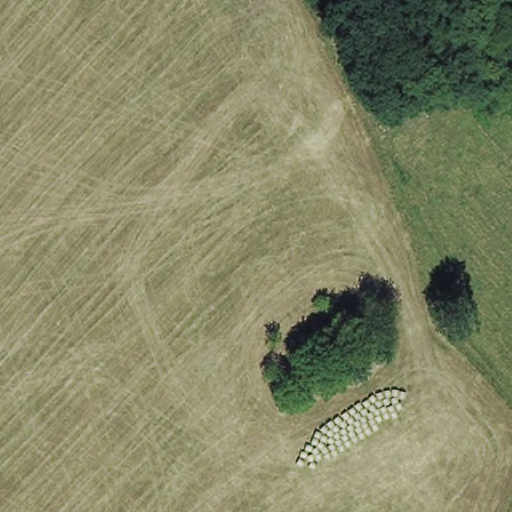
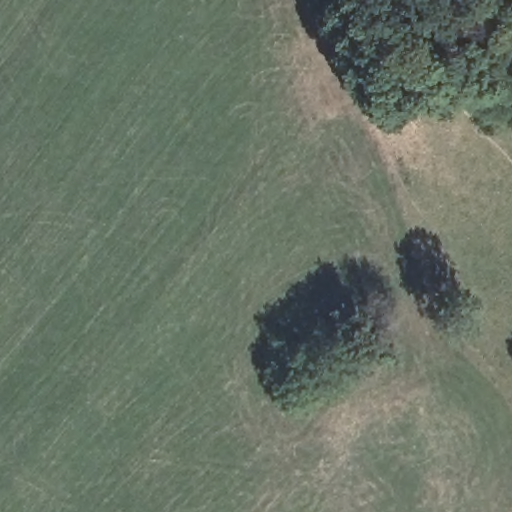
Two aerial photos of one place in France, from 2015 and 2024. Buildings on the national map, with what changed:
[]

